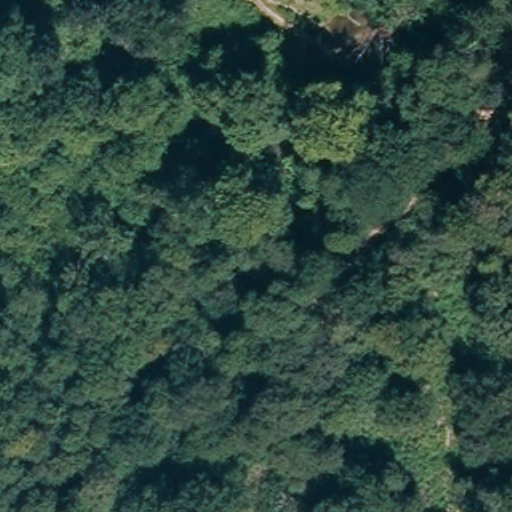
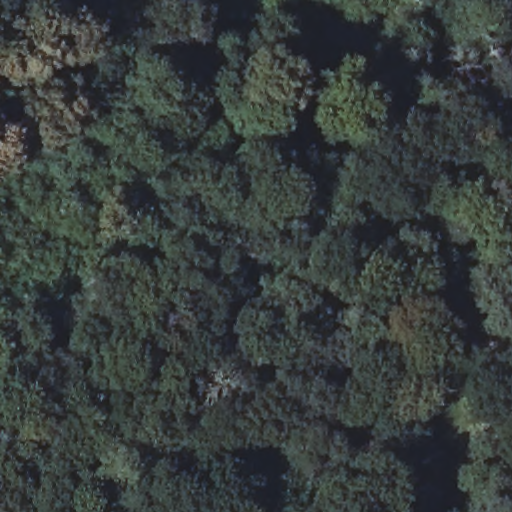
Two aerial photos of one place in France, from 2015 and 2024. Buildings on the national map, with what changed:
[]

